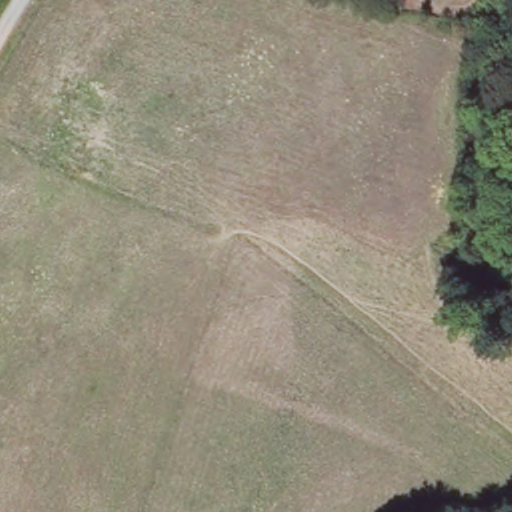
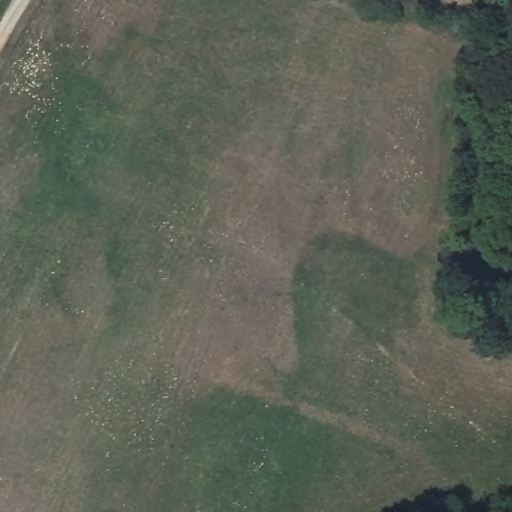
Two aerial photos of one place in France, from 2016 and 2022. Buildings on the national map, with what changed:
[]

